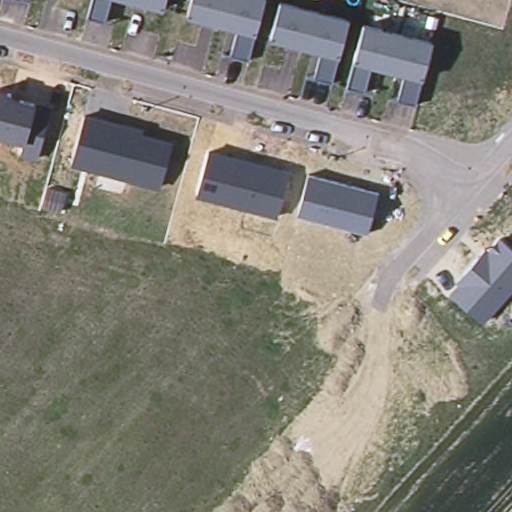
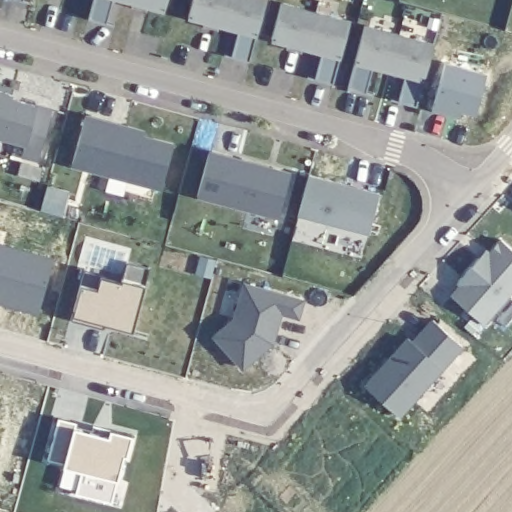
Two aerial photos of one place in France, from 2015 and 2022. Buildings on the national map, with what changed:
unchanged [(25,2),(17,0),(26,0),(25,2)]
unchanged [(92,0),(171,0),(167,16),(115,2),(109,23),(87,17),(92,0)]
unchanged [(252,61),(231,55),(237,32),(187,18),(191,0),(268,0),(252,61)]
unchanged [(352,20),(335,84),(313,77),(318,54),(272,42),(283,2),(352,20)]
unchanged [(432,43),(416,105),(397,98),(404,77),(375,68),(367,92),(347,85),(364,25),(432,43)]
new [(485,76),(477,117),(435,107),(445,65),(485,76)]
unchanged [(15,97),(37,103),(32,118),(50,122),(40,158),(19,153),(23,142),(0,136),(0,89),(17,94),(15,97)]
unchanged [(144,127),(143,133),(173,141),(160,190),(71,166),(85,112),(144,127)]
unchanged [(291,169),(278,219),(195,197),(208,148),(291,169)]
unchanged [(379,192),(368,234),(295,215),(307,172),(379,192)]
unchanged [(512,248),(512,294),(484,326),(448,293),(458,283),(455,281),(485,248),(488,250),(500,237),(512,248)]
new [(40,316),(0,306),(0,247),(52,262),(40,316)]
new [(110,324),(110,320),(107,320),(104,327),(72,319),(74,309),(81,283),(97,287),(100,275),(122,281),(126,262),(148,268),(143,286),(132,328),(110,324)]
new [(214,332),(234,316),(243,282),(304,298),(298,318),(281,313),(272,341),(242,369),(214,332)]
new [(363,383),(407,336),(410,340),(430,318),(462,347),(400,417),(363,383)]
new [(63,464),(65,459),(46,457),(57,417),(75,422),(73,428),(108,436),(110,429),(130,433),(125,454),(122,453),(115,479),(63,464)]

